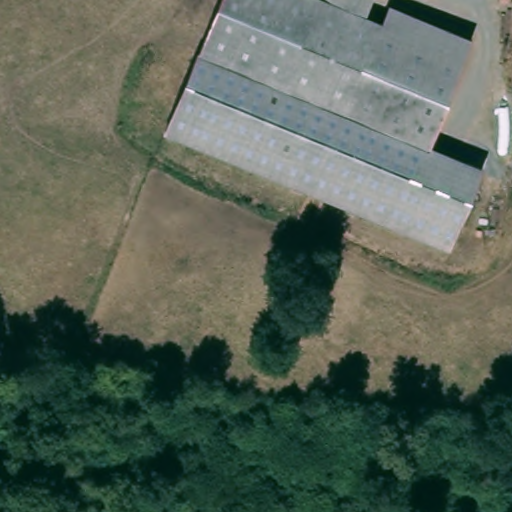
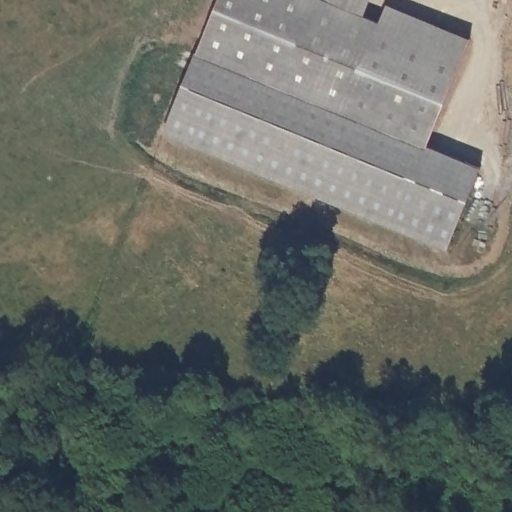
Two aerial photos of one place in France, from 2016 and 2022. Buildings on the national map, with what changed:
unchanged [(373,0),(369,11),(386,20),(350,113),(198,47),(218,0),(373,0)]
unchanged [(394,1),(477,32),(435,142),(350,113),(386,20),(394,1)]
unchanged [(486,162),(453,250),(162,132),(198,47),(350,113),(435,142),(486,162)]

